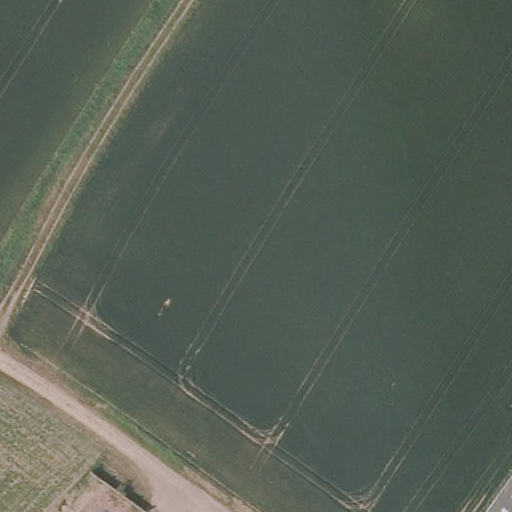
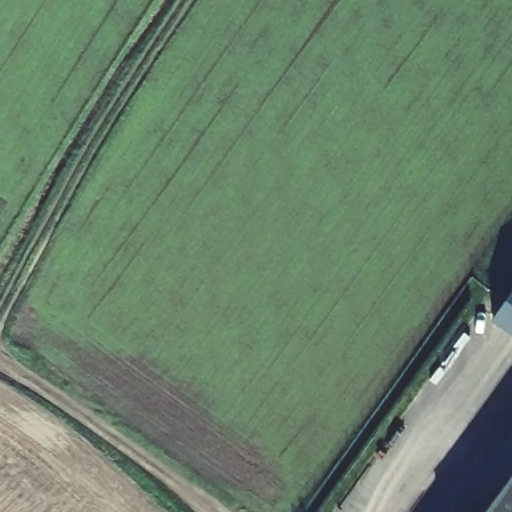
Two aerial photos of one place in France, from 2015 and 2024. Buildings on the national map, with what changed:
new [(492,318),(512,291),(512,333),(492,318)]
unchanged [(479,512),(512,468),(512,512),(479,512)]

